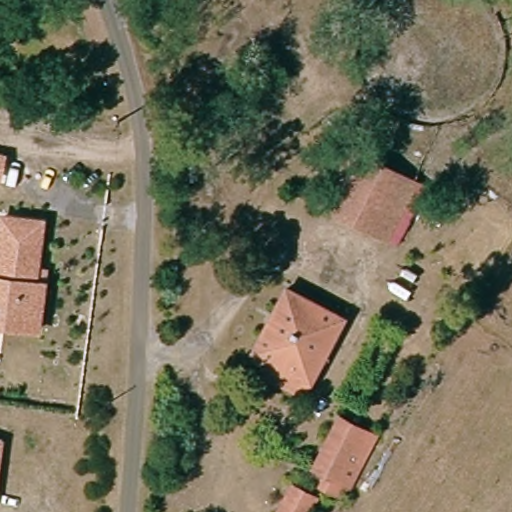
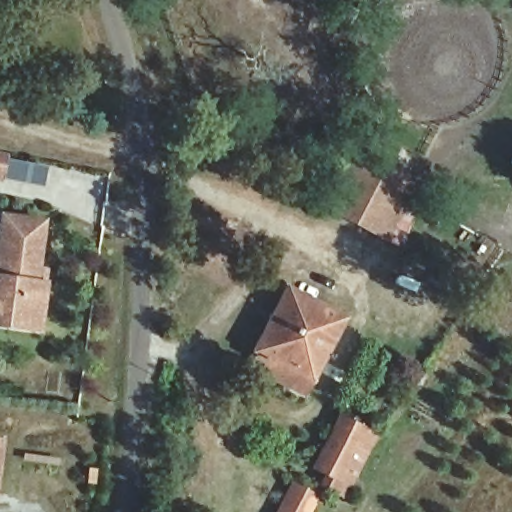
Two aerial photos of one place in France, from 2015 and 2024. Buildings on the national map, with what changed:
unchanged [(413,182),(382,244),(323,219),(359,153),(413,182)]
unchanged [(2,181),(0,180),(0,155),(7,156),(2,181)]
unchanged [(31,267),(40,268),(38,283),(32,328),(7,325),(0,324),(0,216),(37,221),(31,267)]
unchanged [(342,320),(307,385),(251,356),(286,289),(342,320)]
unchanged [(366,450),(345,487),(314,471),(341,416),(373,433),(366,450)]
unchanged [(0,449),(0,442),(1,442),(0,449)]
unchanged [(289,487),(312,497),(305,512),(277,512),(289,487)]

